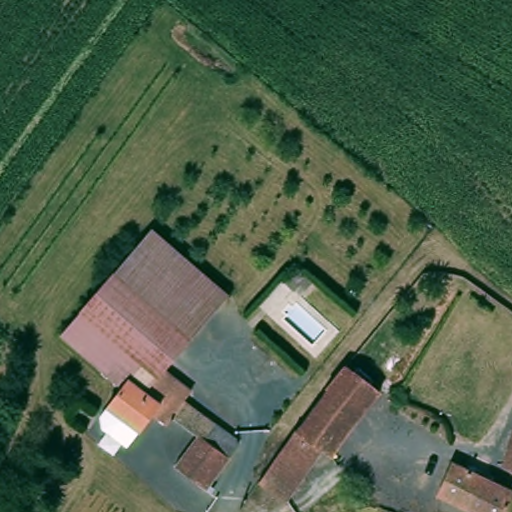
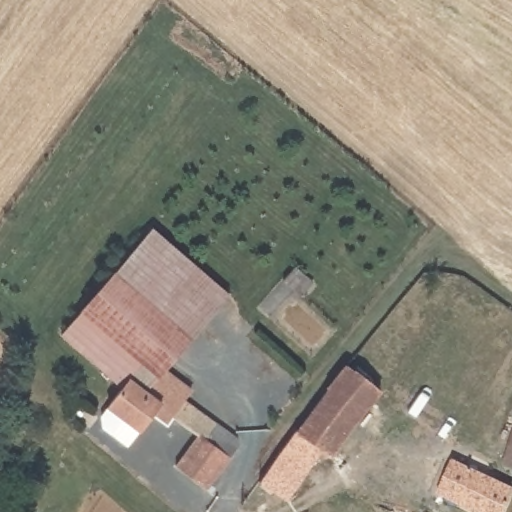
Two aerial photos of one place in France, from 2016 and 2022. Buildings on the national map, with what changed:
unchanged [(64,331),(153,226),(230,292),(159,375),(149,386),(134,373),(125,384),(64,331)]
unchanged [(313,410),(332,385),(334,382),(334,381),(347,364),(381,389),(331,457),(322,450),(298,431),(313,410)]
unchanged [(104,425),(101,413),(109,405),(125,384),(134,373),(149,386),(159,375),(238,440),(238,451),(232,458),(203,435),(201,437),(175,416),(169,425),(154,414),(139,431),(128,445),(104,425)]
unchanged [(511,411),(512,406),(512,412),(511,411)]
unchanged [(322,450),(287,501),(260,483),(261,482),(294,436),(295,435),(297,432),(298,431),(322,450)]
unchanged [(509,478),(507,477),(496,473),(497,472),(498,470),(503,458),(504,455),(508,444),(509,442),(509,440),(512,434),(512,474),(509,478)]
unchanged [(208,488),(178,465),(201,437),(203,435),(232,458),(208,488)]
unchanged [(505,512),(474,512),(438,496),(451,470),(456,459),(475,467),(469,478),(512,497),(505,512)]

